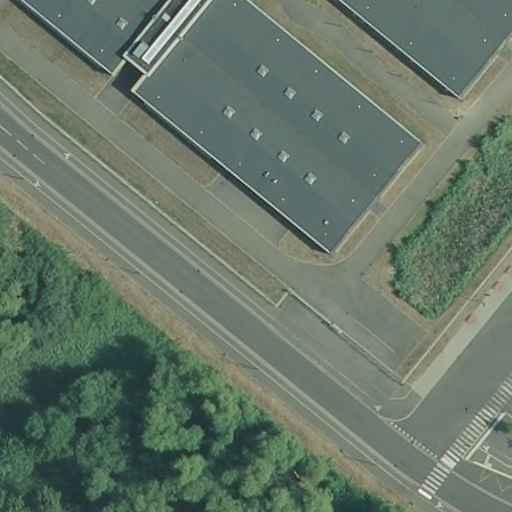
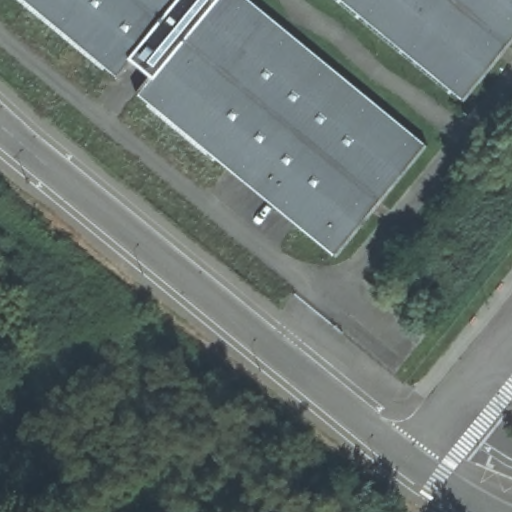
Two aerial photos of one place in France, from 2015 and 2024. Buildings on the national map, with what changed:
unchanged [(423,140),(426,141),(423,145),(418,140),(376,191),(381,196),(379,199),(376,196),(374,195),(373,196),(332,246),(338,250),(334,254),(332,251),(334,250),(256,187),(139,91),(138,92),(138,91),(136,92),(133,90),(136,87),(139,90),(151,75),(128,57),(116,71),(119,74),(116,76),(114,75),(115,74),(114,72),(114,71),(26,0),(247,0),(422,141),(423,140)]
unchanged [(509,40),(506,42),(501,39),(459,90),(464,94),(462,97),(459,95),(461,93),(345,0),(512,0),(512,24),(503,35),(509,40)]

